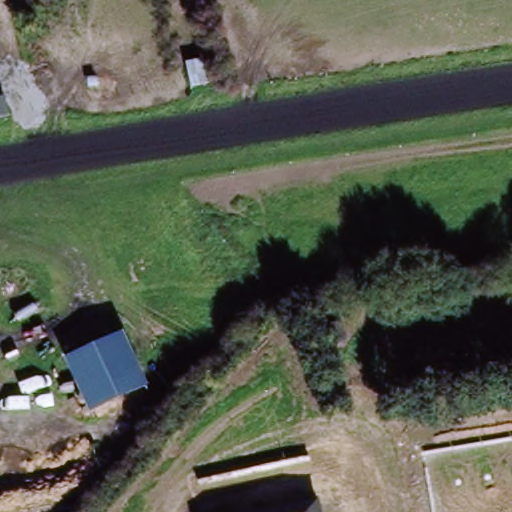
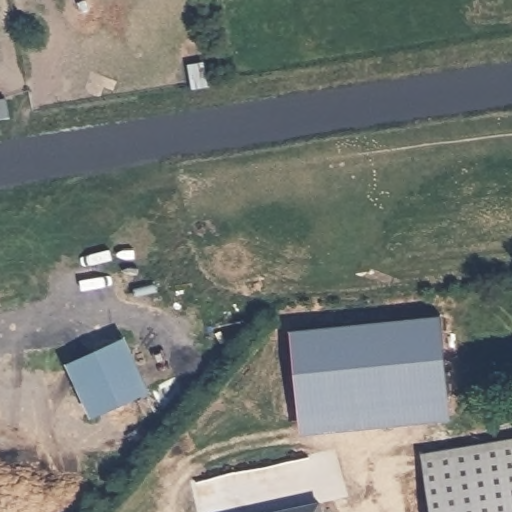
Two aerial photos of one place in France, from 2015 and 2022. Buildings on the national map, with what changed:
new [(436,315),(447,419),(297,435),(286,331),(436,315)]
unchanged [(127,337),(152,392),(92,418),(67,363),(127,337)]
new [(430,512),(420,453),(512,438),(512,512),(430,512)]
demolished [(286,480),(294,512),(196,512),(194,499),(286,480)]
unchanged [(321,512),(299,512),(320,508),(321,512)]

